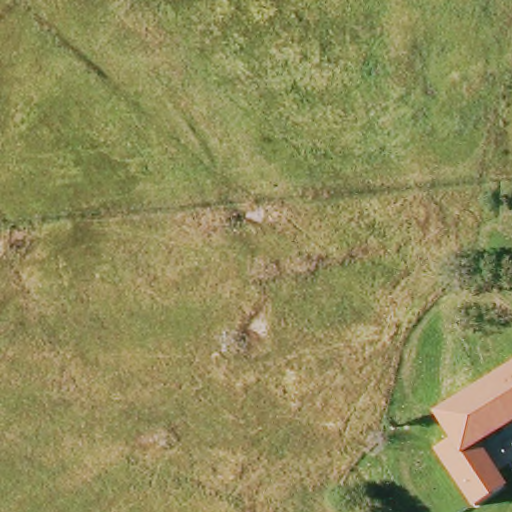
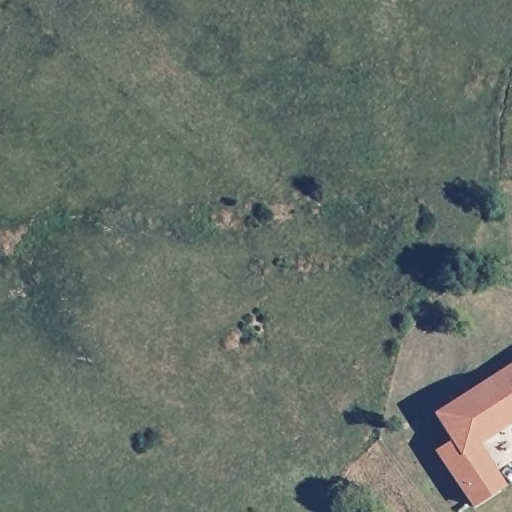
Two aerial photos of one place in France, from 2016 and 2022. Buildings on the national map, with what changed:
unchanged [(493,350),(507,367),(512,364),(512,422),(475,448),(494,483),(469,502),(437,450),(446,440),(434,419),(465,395),(455,377),(493,350)]

